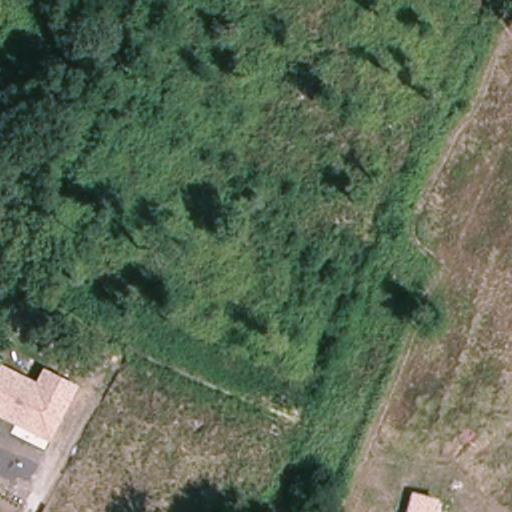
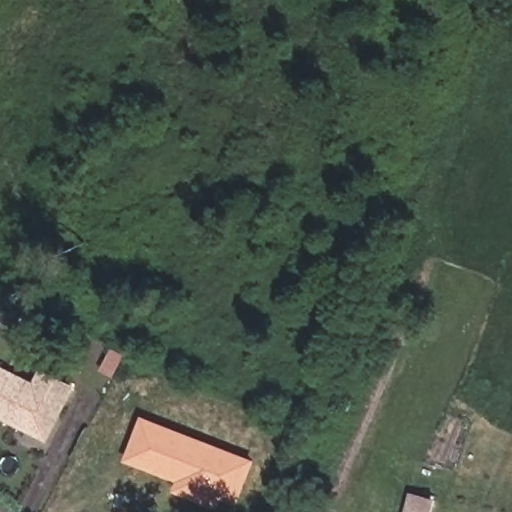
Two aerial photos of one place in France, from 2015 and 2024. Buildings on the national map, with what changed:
unchanged [(52,443),(0,418),(0,363),(35,381),(41,366),(80,386),(52,443)]
new [(126,462),(143,417),(258,461),(239,506),(223,500),(219,509),(174,492),(178,482),(126,462)]
unchanged [(439,512),(407,512),(411,492),(442,499),(439,512)]

